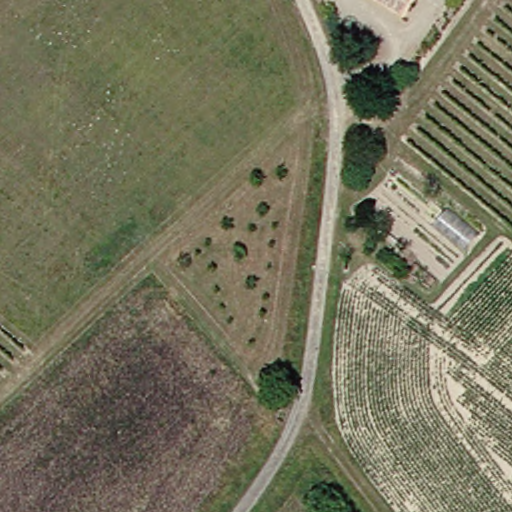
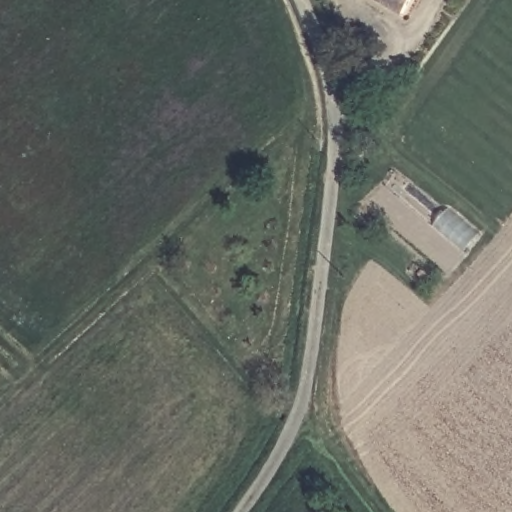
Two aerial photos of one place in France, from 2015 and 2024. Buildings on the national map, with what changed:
unchanged [(382,0),(405,0),(399,10),(382,0)]

